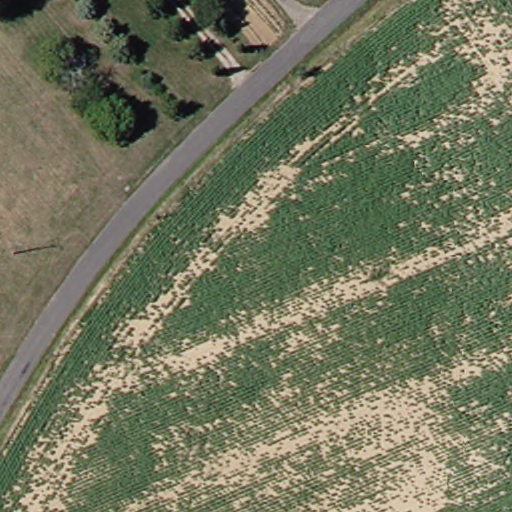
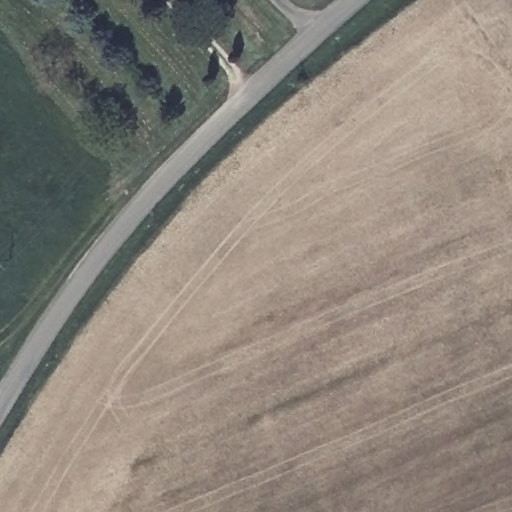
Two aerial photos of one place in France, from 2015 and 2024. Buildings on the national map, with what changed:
[]

